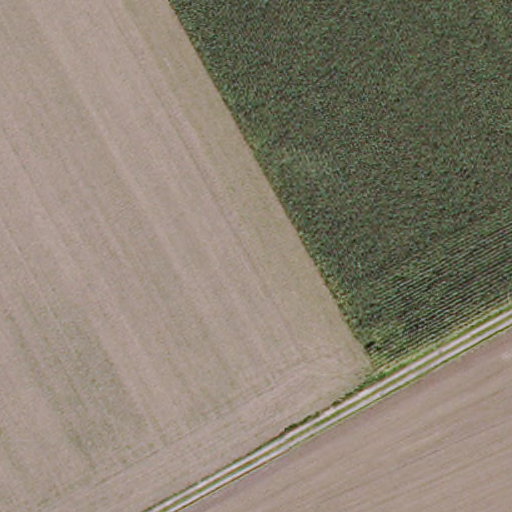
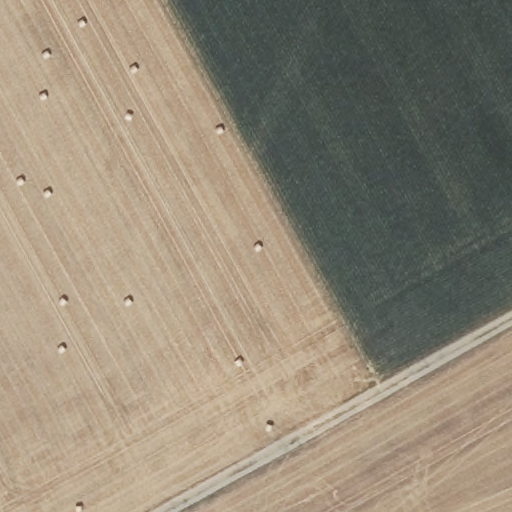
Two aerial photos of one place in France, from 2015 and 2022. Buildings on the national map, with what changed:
[]

